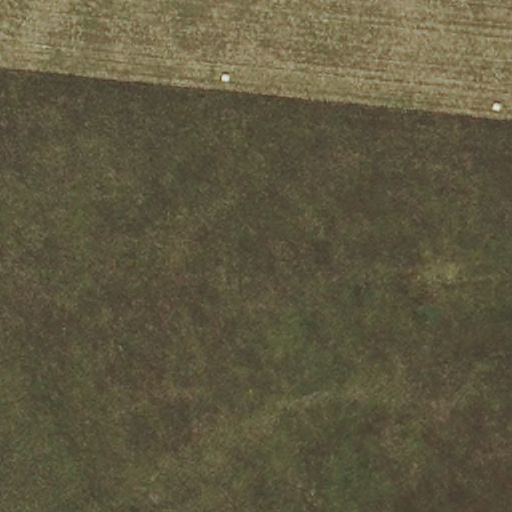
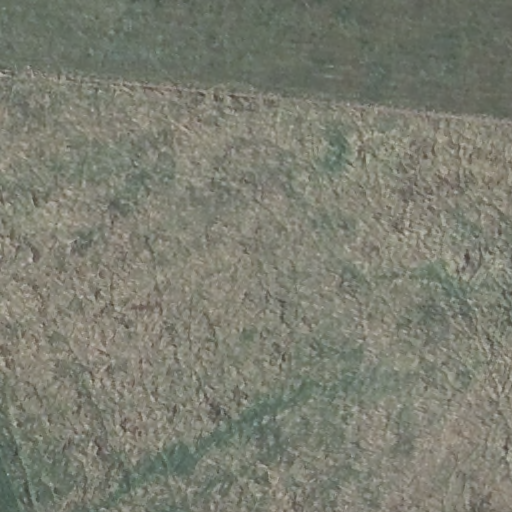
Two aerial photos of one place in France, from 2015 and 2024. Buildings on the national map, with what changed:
[]

